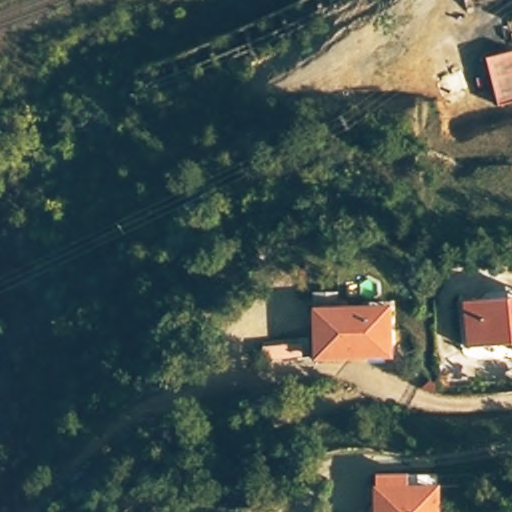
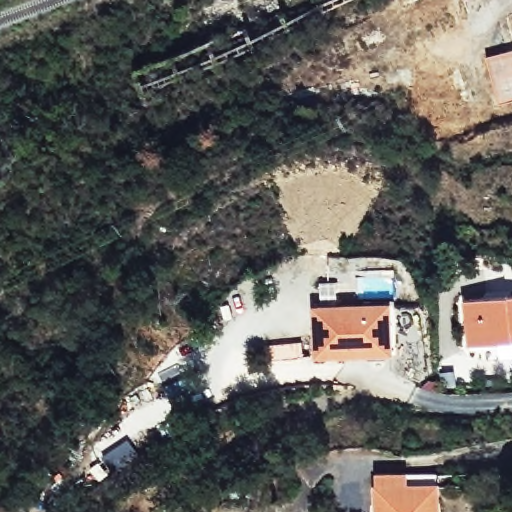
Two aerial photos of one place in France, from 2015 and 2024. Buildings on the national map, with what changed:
unchanged [(510,50),(512,61),(512,102),(492,106),(482,56),(510,50)]
unchanged [(466,297),(512,296),(512,341),(467,343),(466,297)]
unchanged [(315,304),(398,308),(396,357),(311,352),(315,304)]
unchanged [(372,484),(439,482),(440,512),(372,512),(372,484)]

